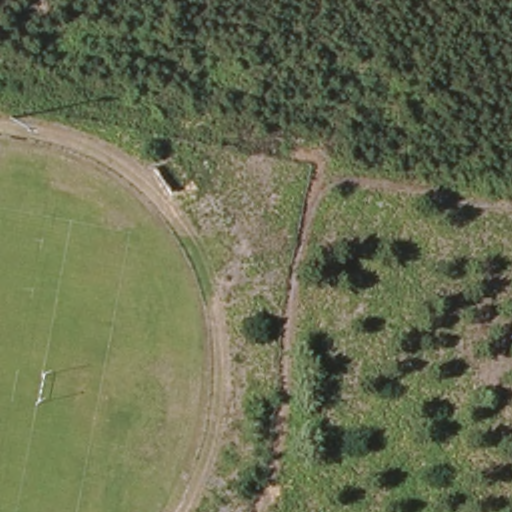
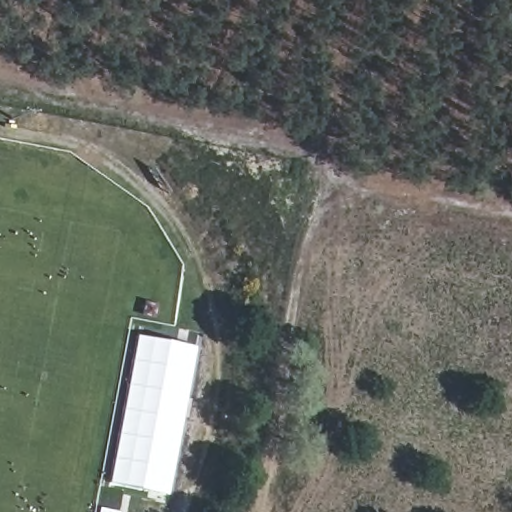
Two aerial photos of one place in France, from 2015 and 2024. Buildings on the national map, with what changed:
new [(197,347),(170,493),(110,482),(136,336),(197,347)]

